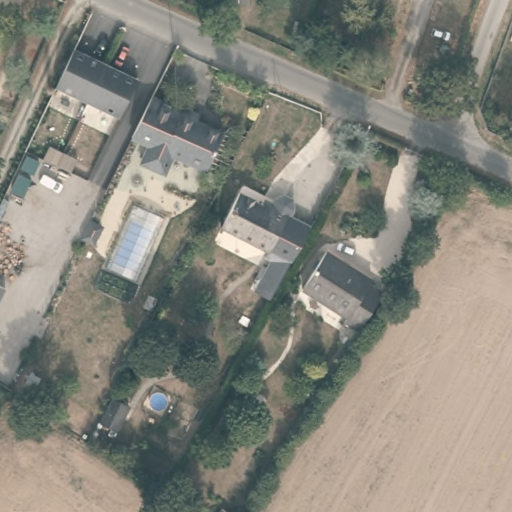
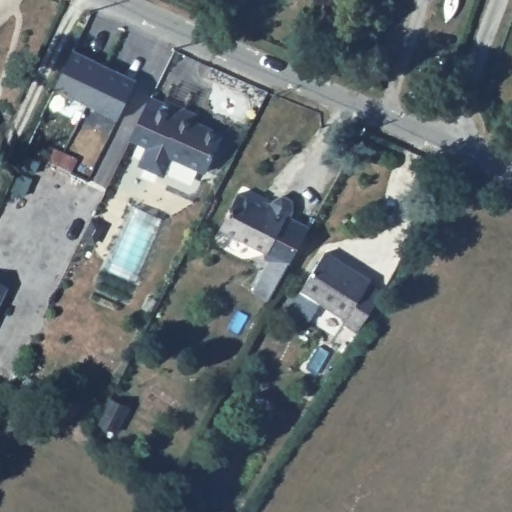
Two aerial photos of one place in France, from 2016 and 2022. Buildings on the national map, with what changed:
unchanged [(249,0),(248,6),(227,4),(227,0),(249,0)]
unchanged [(94,60),(117,70),(137,80),(119,119),(55,89),(74,50),(94,60)]
unchanged [(187,111),(188,110),(203,116),(200,122),(227,135),(211,171),(177,156),(171,171),(166,174),(149,166),(148,161),(154,146),(136,139),(157,98),(187,111)]
unchanged [(72,173),(43,160),(49,147),(77,160),(72,173)]
unchanged [(238,194),(270,210),(275,201),(283,196),(291,201),(292,210),(289,215),(288,215),(269,252),(221,227),(238,194)]
unchanged [(288,215),(309,225),(269,302),(252,292),(269,252),(288,215)]
unchanged [(371,282),(368,285),(382,295),(358,331),(344,322),(347,319),(301,290),(325,252),(371,282)]
unchanged [(5,290),(0,300),(0,287),(5,290)]
unchanged [(113,398),(129,406),(116,432),(99,424),(113,398)]

